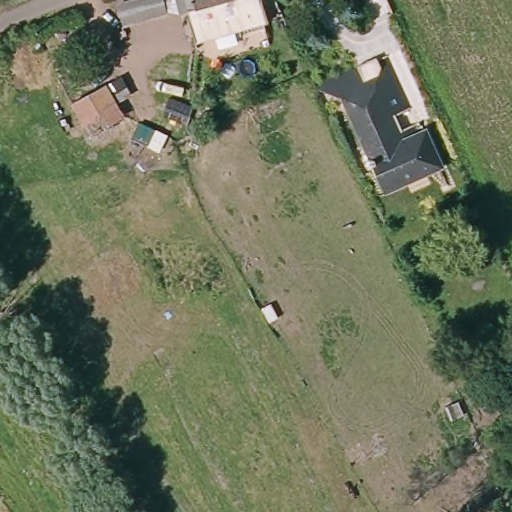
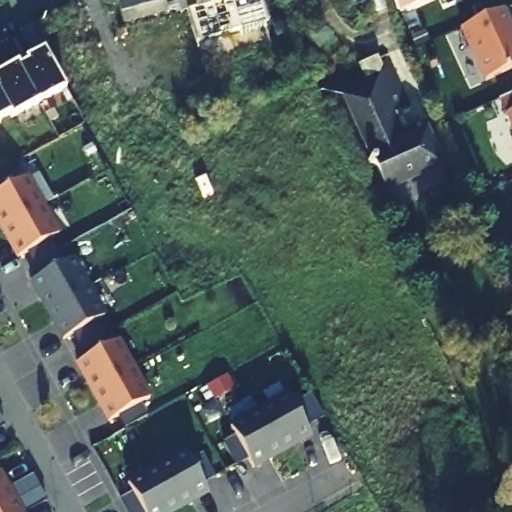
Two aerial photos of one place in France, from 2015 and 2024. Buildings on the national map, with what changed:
unchanged [(127,17),(122,0),(166,0),(167,7),(127,17)]
unchanged [(260,11),(263,23),(240,30),(237,22),(195,35),(189,5),(179,7),(177,0),(261,0),(264,10),(260,11)]
new [(390,0),(429,0),(397,15),(390,0)]
new [(501,12),(510,32),(507,33),(512,42),(512,70),(483,82),(460,30),(501,12)]
new [(42,48),(30,55),(18,32),(30,26),(42,48)]
new [(12,119),(7,111),(0,114),(0,73),(43,52),(65,92),(42,102),(12,119)]
unchanged [(330,92),(354,81),(356,80),(367,74),(368,76),(378,72),(398,115),(397,116),(390,119),(398,135),(420,126),(439,167),(382,194),(365,156),(368,154),(353,121),(348,124),(340,105),(335,95),(333,97),(328,99),(312,100),(330,92)]
demolished [(106,87),(130,132),(100,149),(75,104),(106,87)]
new [(502,116),(512,112),(512,137),(502,116)]
new [(15,260),(0,232),(0,193),(29,177),(61,233),(15,260)]
new [(74,258),(107,316),(60,342),(28,286),(74,258)]
new [(120,341),(152,397),(106,423),(74,367),(120,341)]
new [(312,438),(256,471),(230,425),(287,393),(312,438)]
new [(209,496),(180,512),(143,512),(127,483),(184,452),(209,496)]
new [(0,472),(1,472),(23,512),(0,512),(0,472)]

